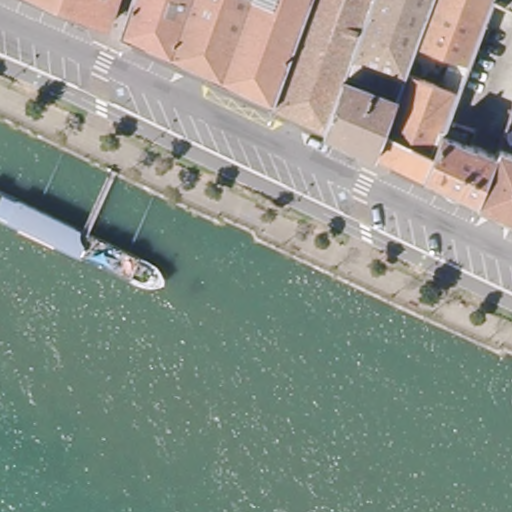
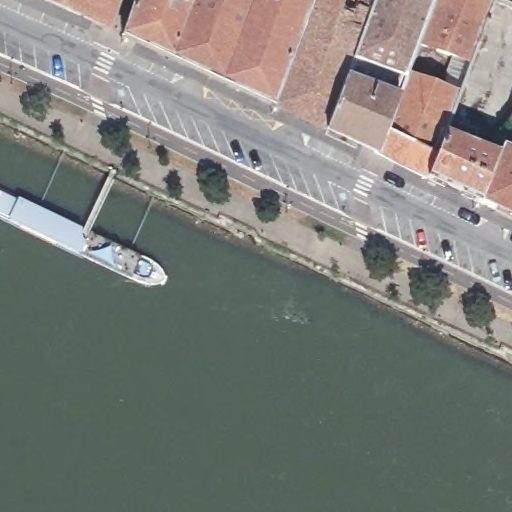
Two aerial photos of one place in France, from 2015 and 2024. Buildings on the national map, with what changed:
unchanged [(107,23),(55,0),(115,0),(107,23)]
unchanged [(273,106),(122,34),(133,0),(312,0),(273,106)]
unchanged [(312,0),(373,0),(325,130),(273,106),(312,0)]
unchanged [(373,0),(433,0),(375,155),(325,130),(373,0)]
unchanged [(433,0),(493,0),(424,178),(375,155),(433,0)]
unchanged [(512,8),(512,114),(477,203),(424,178),(493,0),(494,0),(512,8)]
unchanged [(512,219),(477,203),(512,114),(512,219)]

